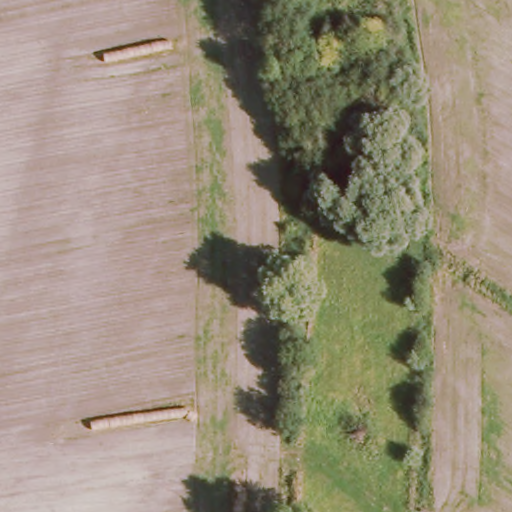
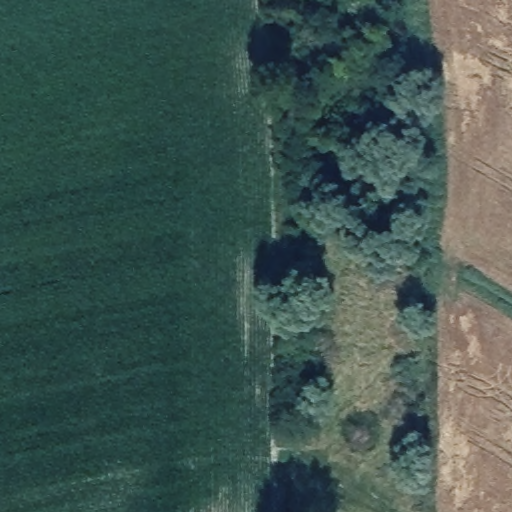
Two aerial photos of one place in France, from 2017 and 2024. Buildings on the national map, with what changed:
[]

